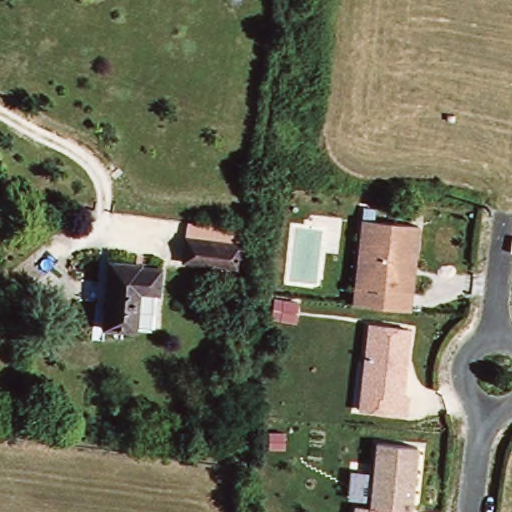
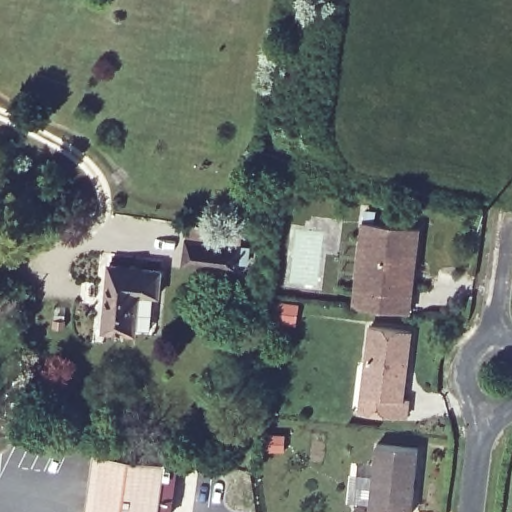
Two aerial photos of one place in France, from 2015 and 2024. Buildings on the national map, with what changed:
unchanged [(363,223),(420,230),(410,314),(354,308),(363,223)]
unchanged [(187,242),(239,249),(236,272),(183,264),(187,242)]
unchanged [(130,329),(130,332),(101,327),(111,264),(140,268),(140,273),(161,275),(158,296),(150,296),(146,330),(130,329)]
unchanged [(369,323),(415,329),(406,395),(413,396),(410,418),(359,412),(369,323)]
unchanged [(377,446),(418,451),(412,512),(355,512),(355,510),(370,511),(377,446)]
new [(178,462),(171,512),(86,512),(94,451),(178,462)]

